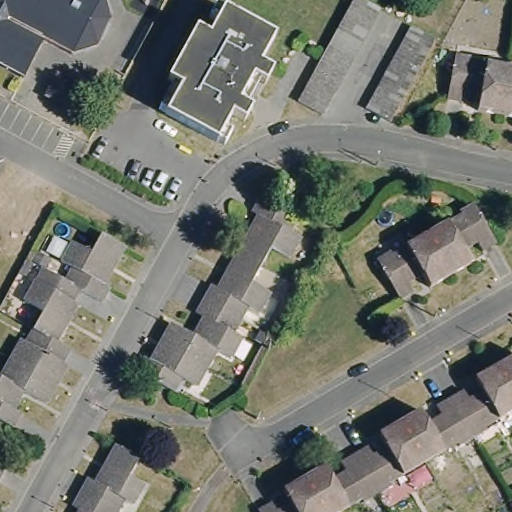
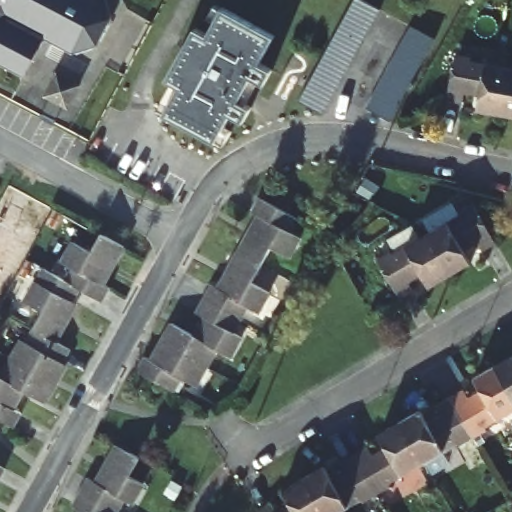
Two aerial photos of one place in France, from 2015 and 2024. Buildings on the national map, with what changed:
unchanged [(117,20),(102,48),(79,56),(49,40),(29,79),(0,64),(0,0),(110,0),(117,20)]
unchanged [(310,76),(316,64),(322,52),(327,41),(334,29),(340,18),(347,6),(350,0),(360,0),(376,8),(371,18),(364,31),(358,42),(352,54),(346,65),(339,77),(333,87),(326,100),(319,114),(296,101),(303,88),(310,76)]
unchanged [(267,84),(255,77),(247,90),(241,101),(254,108),(246,122),(234,116),(219,141),(167,113),(181,88),(169,81),(197,28),(210,35),(224,9),(276,37),(262,63),(274,70),(267,84)]
unchanged [(375,97),(381,85),(387,73),(395,61),(401,49),(407,38),(414,25),(437,38),(431,50),(424,62),(418,73),(411,86),(405,98),(398,110),(392,120),(369,107),(375,97)]
unchanged [(502,115),(479,110),(481,96),(467,93),(465,93),(462,103),(446,100),(455,54),(472,57),(471,60),(474,61),(511,68),(502,115)]
unchanged [(502,115),(511,68),(512,68),(512,117),(502,115)]
unchanged [(57,75),(77,89),(63,110),(42,96),(57,75)]
unchanged [(227,291),(237,272),(235,270),(245,251),(250,242),(266,214),(258,209),(266,195),(306,217),(299,231),(306,236),(297,255),(281,246),(272,261),(271,265),(260,284),(275,292),(265,311),(257,308),(249,323),(209,302),(217,287),(227,291)]
unchanged [(469,251),(475,264),(456,275),(433,236),(431,235),(466,215),(467,214),(465,212),(480,203),(502,241),(487,251),(482,241),(480,243),(481,244),(469,251)]
unchanged [(118,265),(114,262),(104,280),(114,286),(106,301),(87,291),(70,280),(77,265),(69,260),(80,240),(96,249),(103,236),(106,232),(130,244),(127,249),(118,265)]
unchanged [(417,290),(402,298),(381,261),(397,252),(398,255),(402,252),(431,235),(433,236),(456,275),(435,288),(427,275),(417,280),(414,282),(417,290)]
unchanged [(66,313),(68,310),(39,292),(51,270),(70,280),(87,291),(74,317),(66,313)]
unchanged [(50,314),(32,305),(39,292),(68,310),(66,313),(74,317),(70,325),(74,328),(64,348),(39,334),(50,314)]
unchanged [(160,365),(169,347),(165,345),(176,326),(198,339),(202,331),(209,320),(202,317),(209,302),(249,323),(242,338),(249,342),(241,356),(239,360),(223,352),(212,371),(207,368),(197,386),(187,380),(180,394),(142,374),(150,359),(160,365)]
unchanged [(0,426),(0,380),(5,382),(14,366),(15,364),(21,367),(39,334),(64,348),(75,354),(57,387),(60,389),(58,392),(51,407),(28,396),(18,414),(24,417),(15,434),(0,426)]
unchanged [(503,366),(512,361),(512,381),(503,366)]
unchanged [(449,451),(450,452),(431,463),(407,422),(426,411),(434,424),(445,417),(449,414),(445,406),(457,399),(471,391),(476,399),(479,397),(489,392),(482,378),(503,366),(512,381),(512,416),(504,421),(502,419),(494,425),(492,426),(493,429),(480,437),(467,444),(466,441),(460,444),(456,447),(449,451)]
unchanged [(330,512),(311,478),(331,467),(337,479),(348,473),(352,470),(347,462),(362,454),(375,446),(380,455),(382,454),(392,447),(386,435),(407,422),(431,463),(397,482),(396,483),(397,485),(384,493),(370,501),(368,498),(364,501),(354,506),(354,507),(345,512),(330,512)]
unchanged [(84,490),(92,473),(102,478),(117,452),(122,442),(147,455),(141,465),(137,474),(151,482),(141,500),(133,496),(125,511),(124,512),(82,512),(83,510),(75,505),(82,492),(84,490)]
unchanged [(0,486),(0,468),(8,472),(0,486)]
unchanged [(282,511),(285,510),(297,504),(290,490),(311,478),(330,512),(265,512),(278,504),(282,511)]

